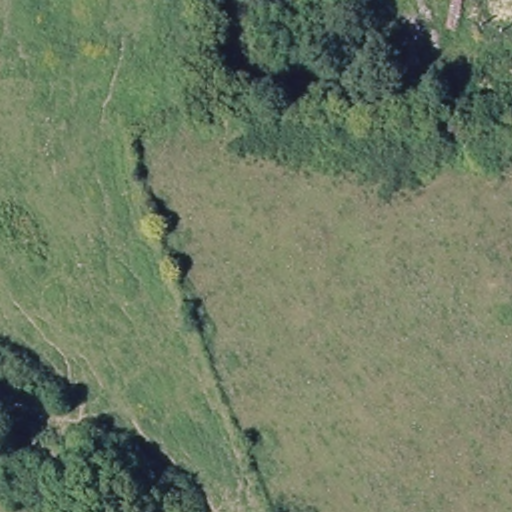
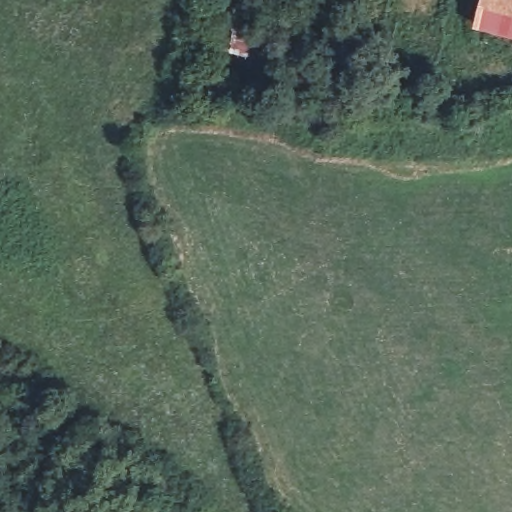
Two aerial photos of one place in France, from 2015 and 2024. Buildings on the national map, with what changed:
new [(473,29),(481,0),(512,0),(512,39),(473,29)]

